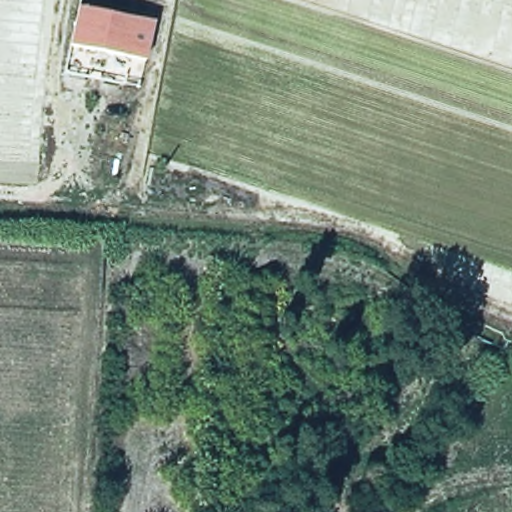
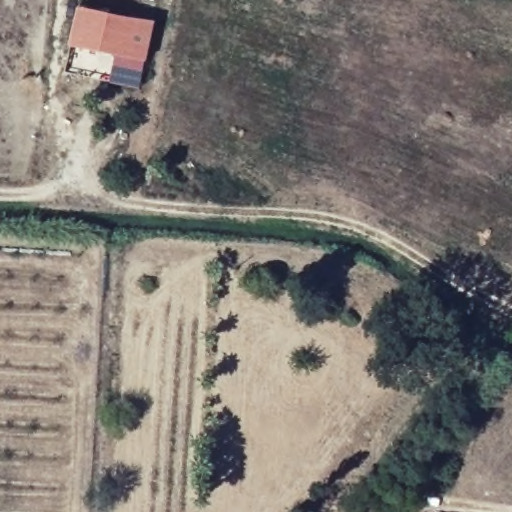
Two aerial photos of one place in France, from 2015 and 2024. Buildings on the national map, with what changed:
unchanged [(117,53),(68,43),(77,4),(114,11),(115,0),(129,0),(125,13),(152,20),(144,61),(117,53)]

